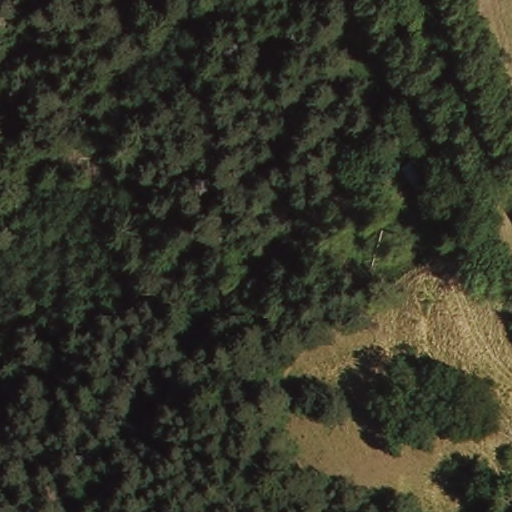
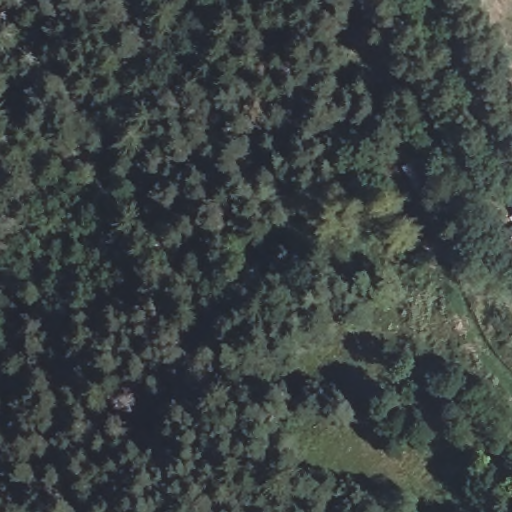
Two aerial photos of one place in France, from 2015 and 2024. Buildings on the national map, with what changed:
unchanged [(430,179),(412,190),(404,171),(418,161),(430,179)]

